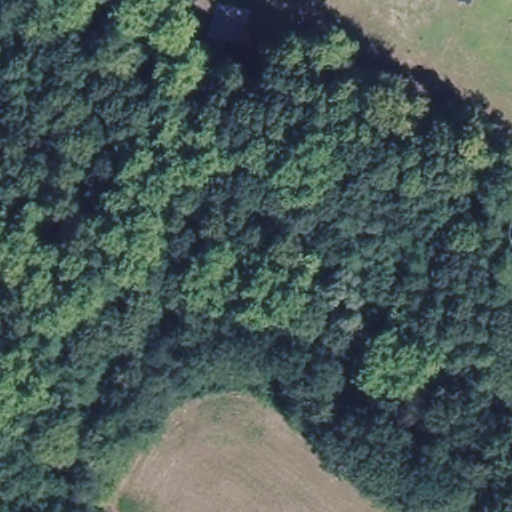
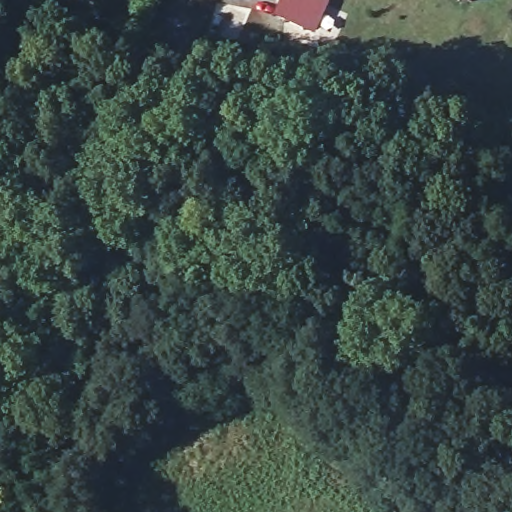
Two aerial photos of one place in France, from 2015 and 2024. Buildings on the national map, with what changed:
new [(276,18),(284,0),(332,0),(316,36),(276,18)]

